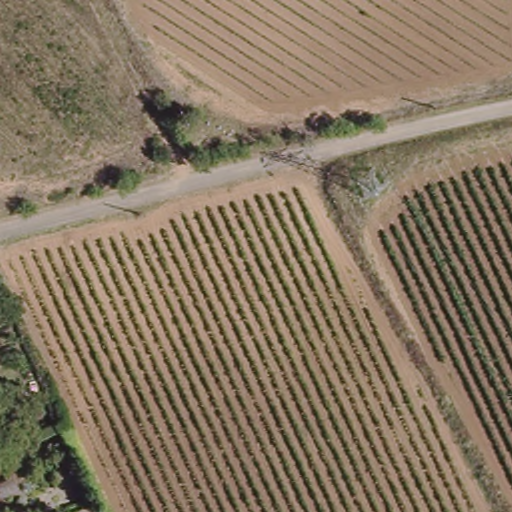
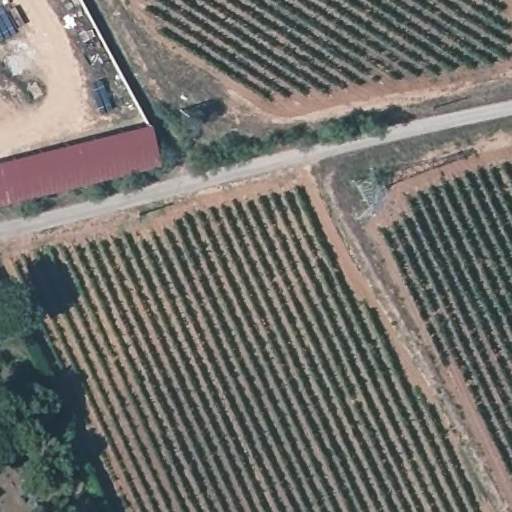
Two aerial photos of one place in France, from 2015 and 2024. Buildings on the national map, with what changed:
new [(0,202),(0,159),(149,123),(159,162),(0,202)]
unchanged [(90,512),(79,512),(89,509),(90,512)]

